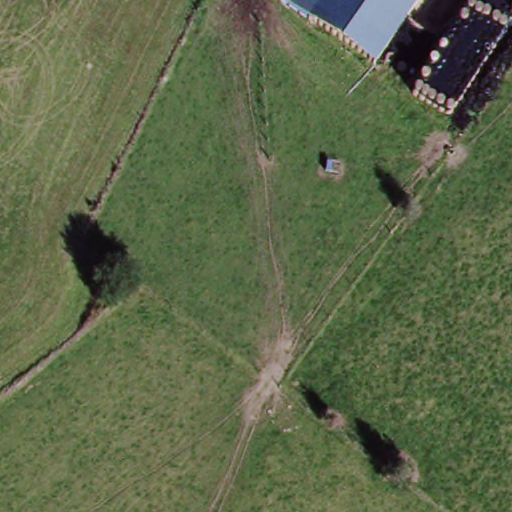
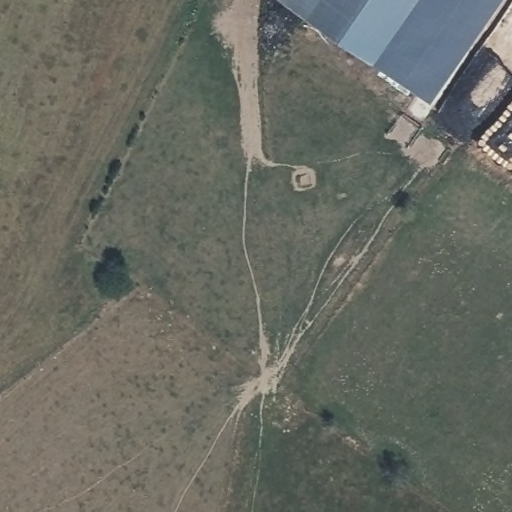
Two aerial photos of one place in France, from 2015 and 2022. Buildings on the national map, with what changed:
unchanged [(307,14),(287,0),(416,0),(372,58),(307,14)]
new [(502,0),(432,102),(372,58),(416,0),(502,0)]

